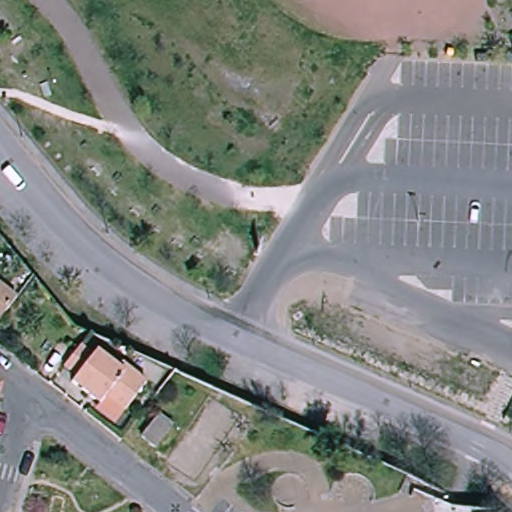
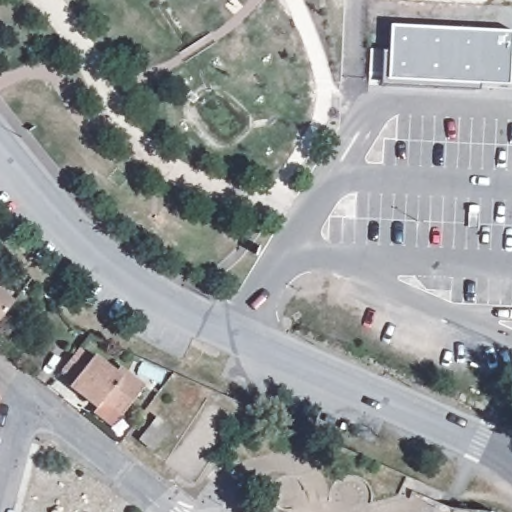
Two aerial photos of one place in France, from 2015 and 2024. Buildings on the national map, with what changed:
new [(390,51),(392,24),(512,30),(512,50),(510,83),(482,82),(482,91),(381,86),(384,51),(390,51)]
unchanged [(0,317),(0,285),(16,296),(0,317)]
unchanged [(99,405),(70,381),(74,376),(61,366),(78,344),(91,353),(93,350),(118,368),(121,365),(144,383),(121,414),(112,424),(95,411),(99,405)]
unchanged [(166,412),(178,421),(159,445),(147,436),(166,412)]

